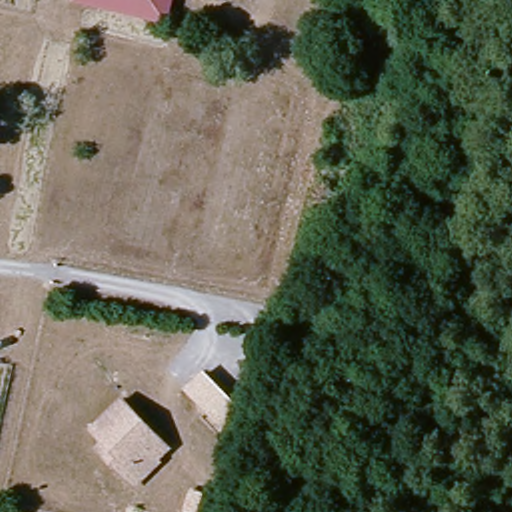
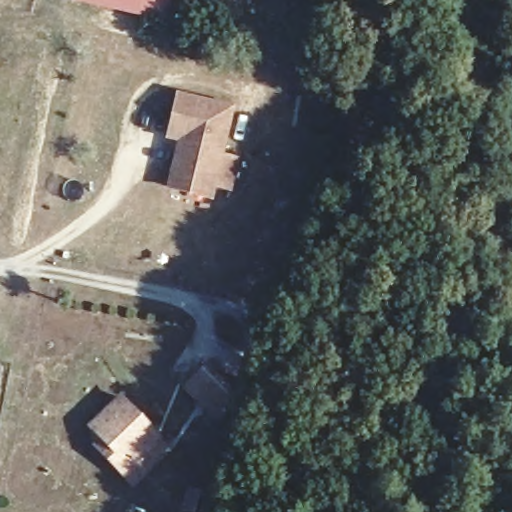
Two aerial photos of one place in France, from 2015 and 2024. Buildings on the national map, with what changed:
unchanged [(90,0),(160,0),(158,10),(90,0)]
new [(234,105),(225,151),(239,156),(233,189),(216,186),(214,200),(167,192),(177,142),(167,140),(177,91),(234,105)]
unchanged [(191,377),(220,408),(204,424),(175,392),(191,377)]
unchanged [(88,419),(120,387),(169,439),(151,454),(153,455),(130,477),(93,437),(99,431),(88,419)]

